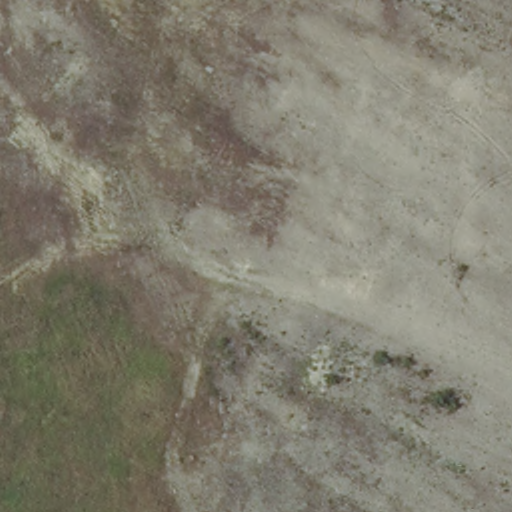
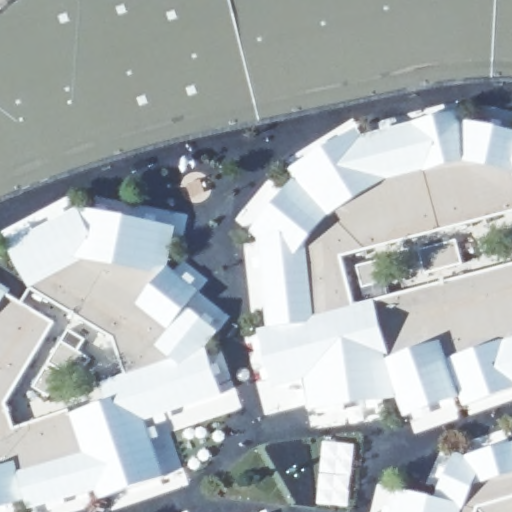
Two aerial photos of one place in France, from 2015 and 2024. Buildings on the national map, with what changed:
new [(22,0),(512,0),(512,81),(488,80),(445,85),(378,99),(235,127),(153,149),(86,170),(11,199),(0,204),(0,19),(22,0)]
new [(268,327),(258,238),(251,231),(295,179),(290,169),(356,126),(363,135),(461,110),(463,121),(512,130),(512,213),(342,256),(355,305),(512,264),(512,391),(466,405),(463,396),(405,415),(397,398),(309,410),(305,381),(274,387),(260,330),(268,327)]
new [(148,421),(165,478),(99,499),(97,492),(31,510),(28,500),(0,511),(0,288),(23,302),(55,321),(7,403),(16,427),(69,411),(70,415),(110,401),(104,382),(126,375),(115,338),(31,290),(10,244),(78,206),(176,226),(171,266),(202,290),(189,307),(221,332),(210,350),(222,395),(148,421)]
new [(458,451),(470,455),(512,441),(512,496),(478,505),(476,512),(391,512),(396,487),(437,496),(458,451)]

